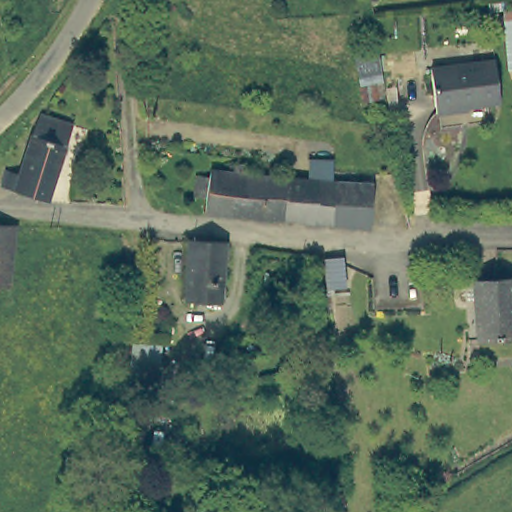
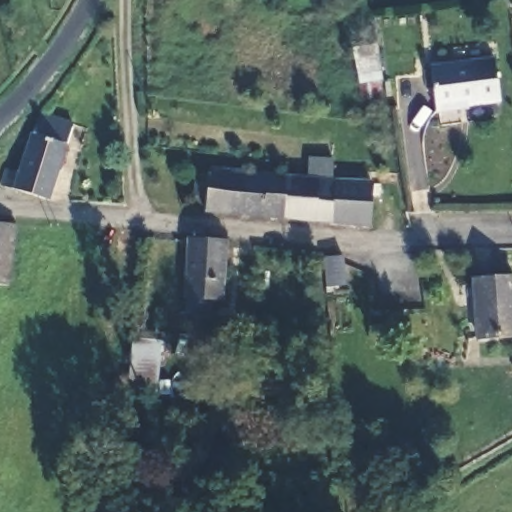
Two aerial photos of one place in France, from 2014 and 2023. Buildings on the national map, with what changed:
unchanged [(361,100),(352,49),(377,44),(385,96),(361,100)]
unchanged [(458,106),(459,108),(435,112),(429,67),(493,59),(498,101),(458,106)]
unchanged [(5,169),(18,173),(39,113),(72,122),(47,200),(0,186),(0,183),(5,169)]
unchanged [(235,214),(209,211),(211,196),(197,195),(200,174),(213,175),(214,168),(288,175),(286,218),(235,214)]
unchanged [(338,179),(336,223),(286,218),(288,175),(338,179)]
unchanged [(338,179),(376,182),(374,226),(336,223),(338,179)]
unchanged [(15,224),(7,285),(0,285),(0,224),(15,224)]
unchanged [(213,240),(224,241),(220,301),(185,298),(188,240),(213,240)]
unchanged [(473,279),(512,277),(512,337),(477,339),(473,279)]
unchanged [(128,374),(133,323),(161,326),(156,377),(128,374)]

